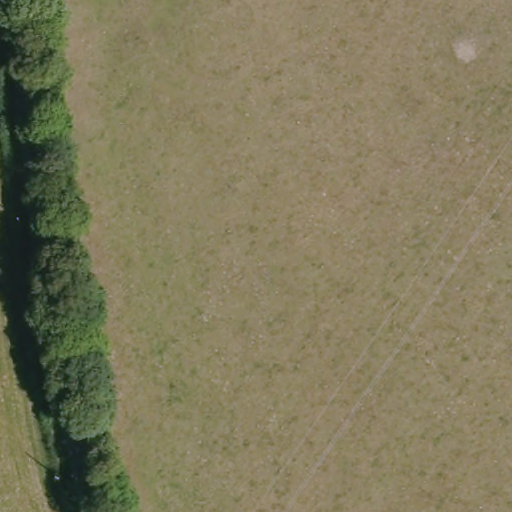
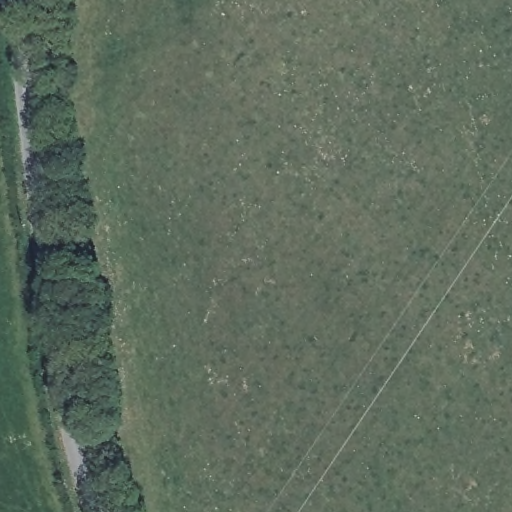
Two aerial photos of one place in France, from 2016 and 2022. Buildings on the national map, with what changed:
[]

